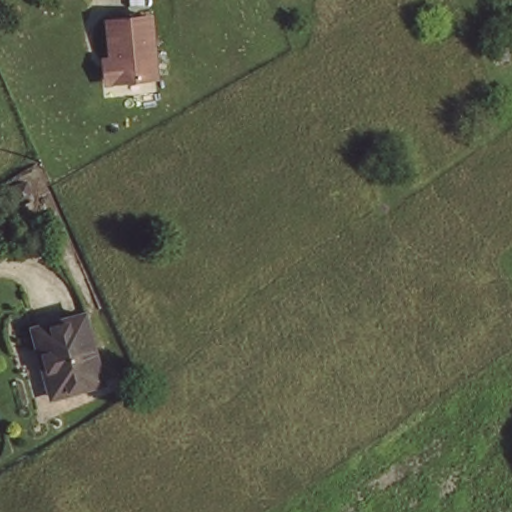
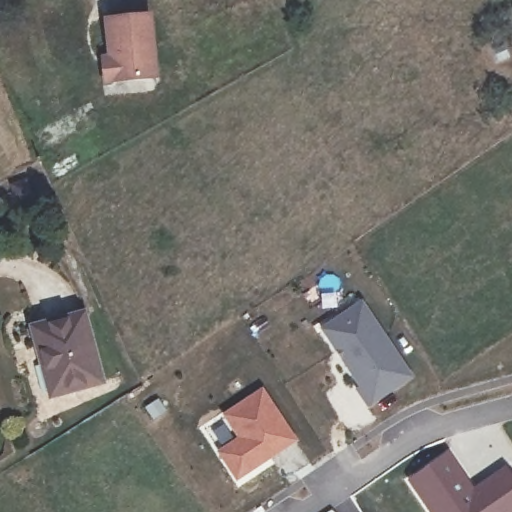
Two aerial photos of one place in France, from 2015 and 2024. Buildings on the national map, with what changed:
unchanged [(105,54),(112,53),(109,14),(152,9),(158,74),(114,77),(106,77),(105,54)]
new [(365,408),(354,390),(358,387),(319,328),(362,299),(412,377),(365,408)]
unchanged [(31,333),(83,319),(100,390),(50,402),(31,333)]
new [(236,482),(216,451),(237,437),(222,415),(262,388),(297,440),(236,482)]
new [(474,485),(505,465),(512,475),(512,512),(428,512),(405,480),(449,448),(474,485)]

